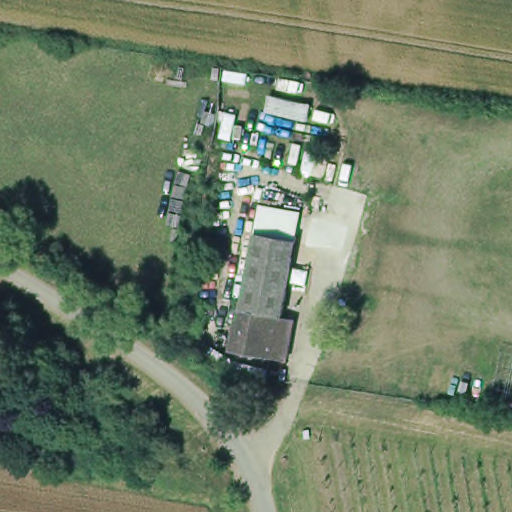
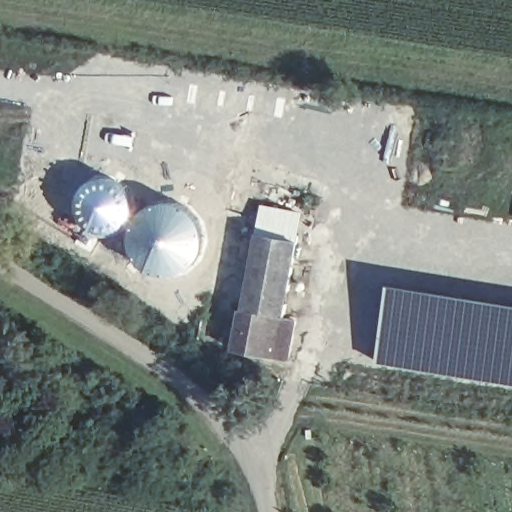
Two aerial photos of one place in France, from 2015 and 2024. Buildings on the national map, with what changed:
unchanged [(245,254),(245,250),(249,229),(254,198),(296,205),(291,237),(287,257),(287,263),(277,313),(235,305),(245,254)]
new [(512,303),(512,383),(378,361),(390,283),(512,303)]
unchanged [(289,314),(282,352),(225,341),(231,304),(235,305),(277,313),(289,314)]

